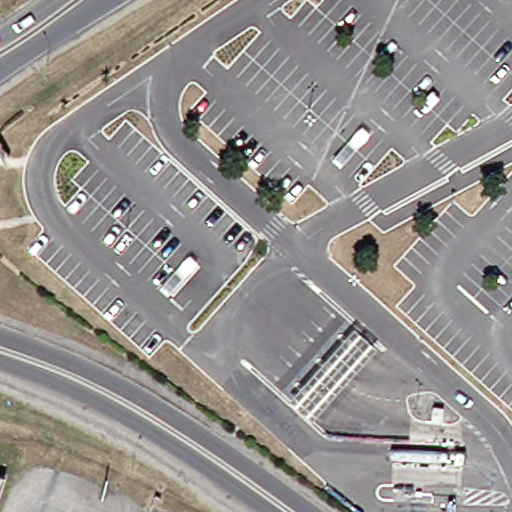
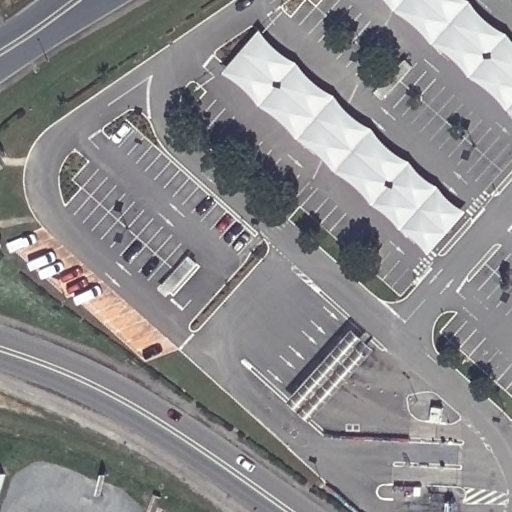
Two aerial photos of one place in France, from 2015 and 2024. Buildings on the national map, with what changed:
new [(470,0),(512,37),(512,111),(391,0),(470,0)]
new [(469,209),(431,252),(227,72),(262,30),(469,209)]
unchanged [(312,418),(291,399),(355,327),(377,347),(312,418)]
unchanged [(0,511),(0,471),(12,474),(0,511)]

